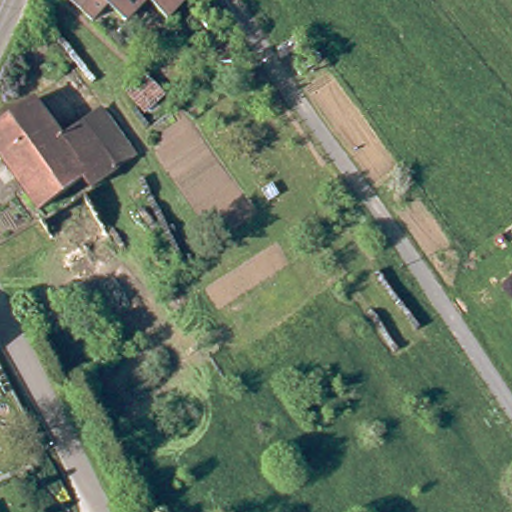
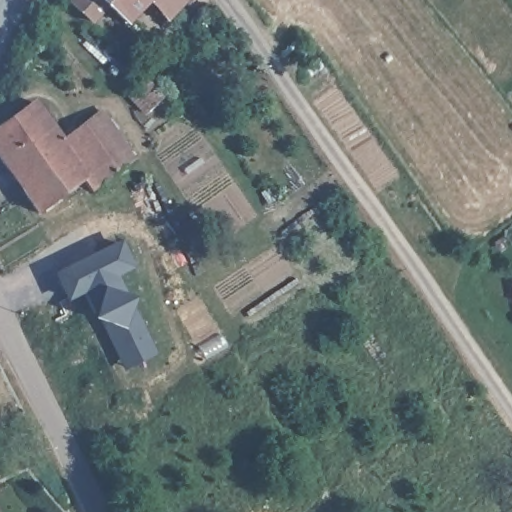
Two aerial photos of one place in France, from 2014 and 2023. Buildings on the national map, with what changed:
unchanged [(171,22),(153,1),(131,25),(112,6),(97,24),(76,5),(79,0),(191,0),(171,22)]
unchanged [(0,147),(0,129),(40,101),(68,139),(90,124),(91,125),(123,168),(125,170),(98,189),(90,178),(45,210),(31,191),(0,147)]
unchanged [(107,114),(139,158),(123,168),(91,125),(107,114)]
new [(137,267),(119,277),(156,353),(122,371),(84,293),(67,302),(52,273),(122,239),(137,267)]

